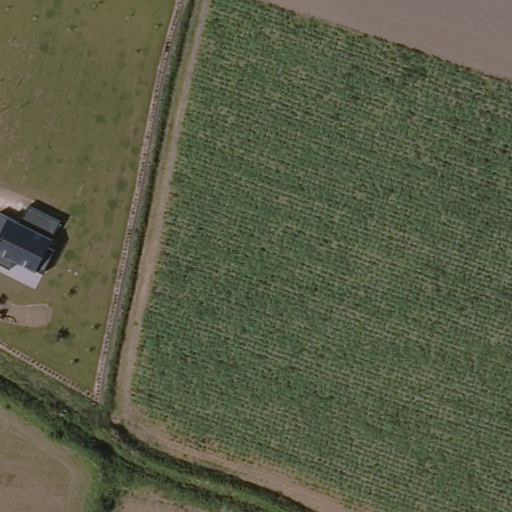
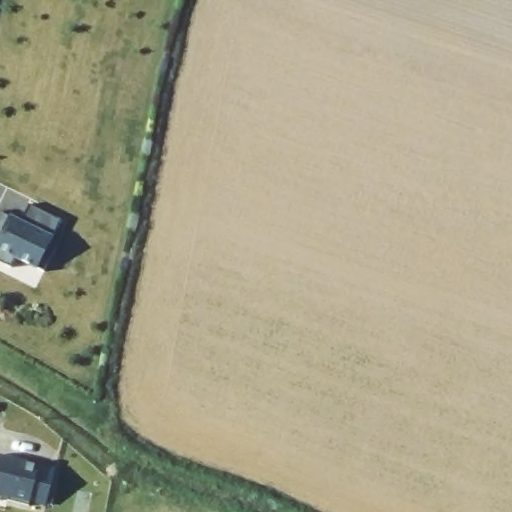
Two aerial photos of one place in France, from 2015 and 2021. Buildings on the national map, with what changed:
unchanged [(38,272),(15,260),(12,267),(0,262),(0,211),(21,220),(29,204),(60,220),(51,237),(58,241),(44,270),(39,268),(38,272)]
new [(45,506),(30,503),(29,506),(8,500),(9,496),(0,494),(0,455),(53,469),(45,506)]

